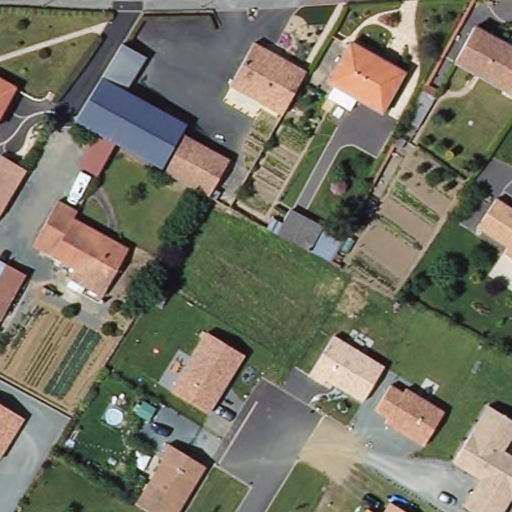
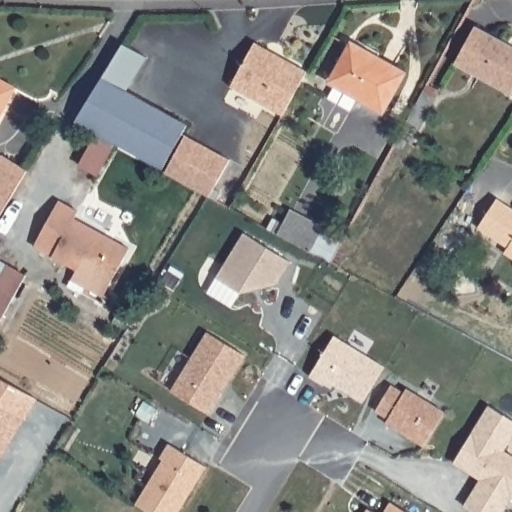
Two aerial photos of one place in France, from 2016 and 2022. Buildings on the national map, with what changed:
unchanged [(512,46),(512,92),(457,63),(476,27),(512,46)]
unchanged [(141,49),(150,54),(130,91),(115,83),(105,77),(126,40),(141,49)]
unchanged [(405,72),(384,112),(329,83),(350,42),(405,72)]
unchanged [(310,77),(303,89),(285,122),(233,92),(257,47),(310,77)]
unchanged [(105,77),(115,83),(130,91),(136,95),(190,126),(166,169),(106,135),(84,123),(80,121),(105,77)]
unchanged [(441,85),(429,109),(420,125),(406,117),(428,77),(441,85)]
unchanged [(0,117),(0,83),(16,93),(0,117)]
unchanged [(231,161),(210,198),(168,174),(188,136),(231,161)]
unchanged [(0,213),(0,156),(26,172),(0,213)]
unchanged [(479,228),(499,198),(512,207),(512,256),(506,252),(509,248),(479,228)]
unchanged [(80,210),(76,219),(130,249),(105,296),(87,288),(83,294),(69,287),(75,270),(33,247),(61,200),(80,210)]
unchanged [(331,262),(312,250),(269,226),(275,216),(285,222),(294,208),(325,227),(344,238),(331,262)]
new [(242,234),(290,261),(277,284),(241,294),(216,280),(242,234)]
unchanged [(28,277),(4,322),(0,321),(0,278),(8,265),(28,277)]
unchanged [(172,389),(205,332),(243,356),(209,412),(172,389)]
unchanged [(362,405),(308,377),(331,338),(383,368),(362,405)]
unchanged [(403,393),(405,390),(443,412),(421,447),(384,424),(387,419),(374,412),(389,386),(403,393)]
unchanged [(0,404),(23,419),(8,444),(0,440),(0,404)]
unchanged [(453,463),(486,406),(512,421),(512,433),(501,450),(512,456),(512,495),(502,512),(476,512),(464,505),(478,479),(453,463)]
unchanged [(0,457),(0,440),(8,444),(0,457)]
unchanged [(179,512),(144,512),(134,507),(168,447),(205,467),(179,512)]
unchanged [(404,512),(382,512),(387,502),(404,512)]
unchanged [(365,508),(372,512),(362,512),(365,509),(365,508)]

